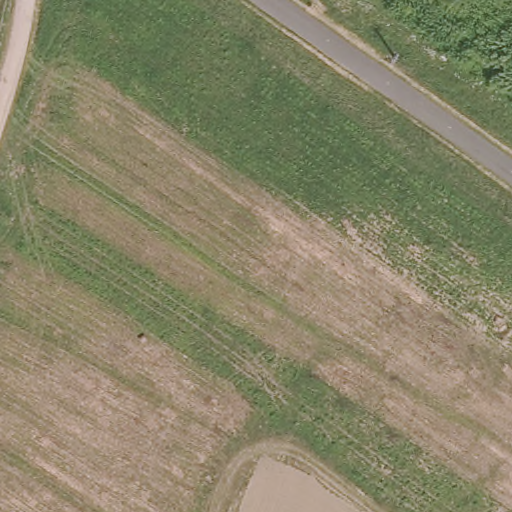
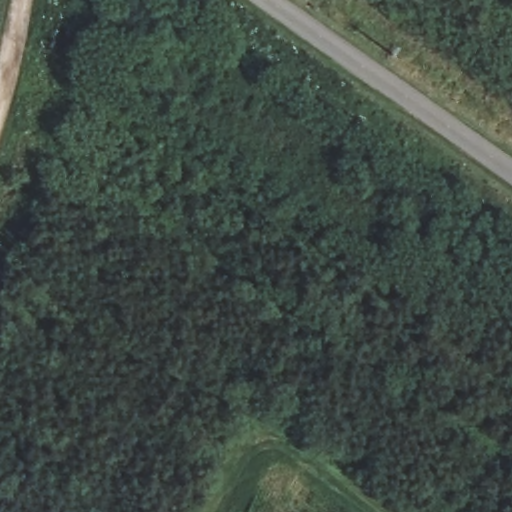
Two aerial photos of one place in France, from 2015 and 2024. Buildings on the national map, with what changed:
[]

